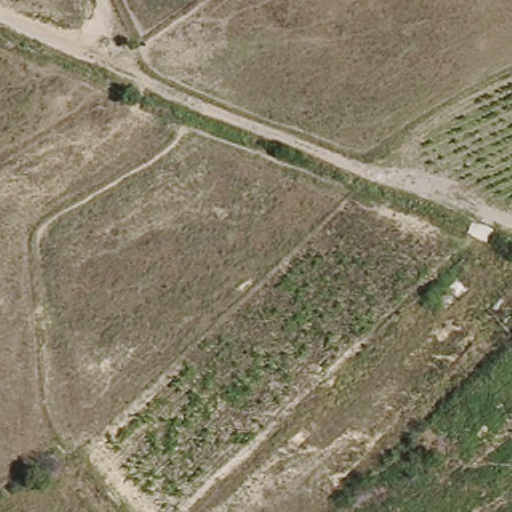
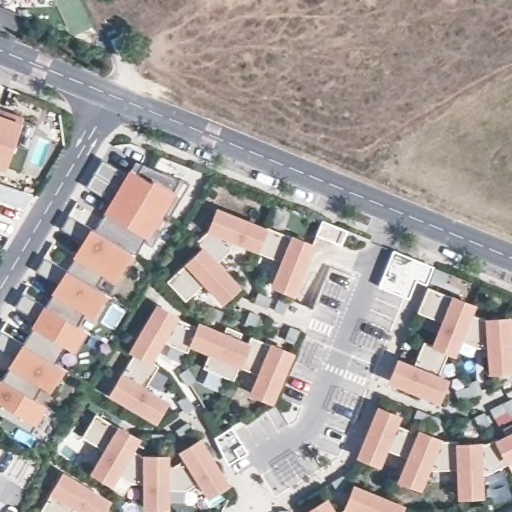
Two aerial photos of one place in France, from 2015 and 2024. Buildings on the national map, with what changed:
new [(13,144),(28,149),(20,171),(0,164),(0,112),(22,120),(13,144)]
new [(128,175),(130,170),(135,161),(142,164),(180,180),(135,255),(95,230),(112,202),(86,187),(102,160),(128,175)]
new [(195,243),(209,230),(217,210),(265,230),(257,249),(235,240),(230,251),(216,265),(238,287),(222,301),(204,282),(185,301),(167,281),(200,248),(195,243)]
new [(99,271),(92,283),(110,293),(95,317),(80,308),(73,320),(87,327),(73,351),(58,343),(48,359),(63,369),(50,392),(37,382),(29,396),(47,405),(30,433),(0,415),(0,377),(2,377),(12,359),(0,350),(0,335),(2,331),(20,342),(33,321),(13,306),(22,292),(42,305),(56,283),(35,269),(45,255),(65,268),(81,244),(60,230),(68,214),(95,230),(135,255),(118,281),(99,271)]
new [(257,249),(265,230),(266,226),(312,245),(292,293),(273,285),(282,262),(256,252),(257,249)]
new [(432,268),(427,285),(415,280),(407,300),(378,289),(392,251),(432,268)]
demolished [(482,300),(460,317),(444,329),(422,308),(452,278),(458,273),(482,300)]
new [(448,302),(450,296),(475,307),(472,315),(483,318),(510,316),(512,341),(512,371),(487,375),(486,352),(461,341),(455,357),(447,353),(437,375),(448,380),(438,405),(387,383),(397,357),(415,365),(423,342),(430,346),(438,324),(417,315),(427,289),(448,302)]
new [(149,303),(178,320),(193,325),(185,346),(183,351),(167,345),(156,339),(143,361),(129,353),(123,350),(149,303)]
new [(193,325),(245,346),(231,380),(201,368),(207,355),(185,346),(193,325)]
new [(246,341),(250,345),(252,338),(267,346),(269,343),(293,353),(272,405),(247,396),(255,377),(235,370),(245,346),(246,341)]
new [(112,374),(117,376),(129,353),(143,361),(153,367),(140,390),(160,402),(148,424),(100,397),(112,374)]
new [(377,410),(397,417),(395,425),(418,435),(408,458),(385,448),(378,464),(358,456),(377,410)]
new [(90,416),(133,441),(127,452),(113,477),(105,490),(83,476),(98,452),(77,440),(90,416)]
new [(505,433),(502,428),(512,424),(512,471),(508,463),(495,438),(505,433)]
new [(408,458),(418,435),(420,431),(442,440),(457,440),(458,469),(432,470),(427,468),(419,487),(400,480),(408,458)]
new [(478,439),(478,445),(483,444),(495,438),(508,463),(484,475),(480,475),(480,495),(460,496),(458,469),(457,440),(478,439)]
new [(162,470),(174,470),(187,461),(182,454),(199,443),(227,487),(210,498),(201,484),(185,494),(162,494),(162,470)]
new [(137,458),(162,458),(162,470),(162,494),(162,512),(138,512),(138,486),(129,486),(113,477),(127,452),(137,458)]
new [(45,498),(56,478),(103,506),(100,512),(41,512),(47,500),(45,498)]
new [(353,487),(402,506),(399,512),(340,512),(344,510),(353,487)]
new [(325,500),(332,512),(308,512),(307,511),(325,500)]

